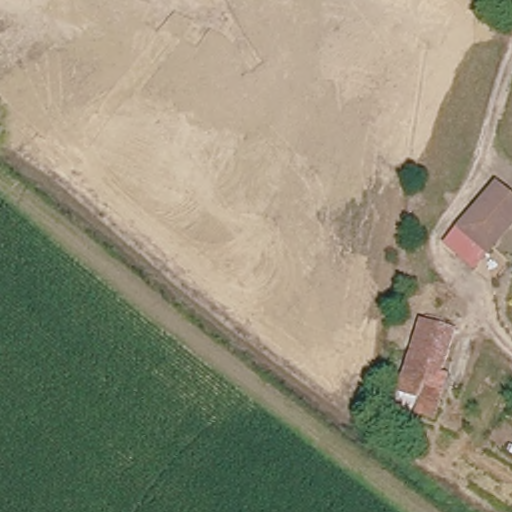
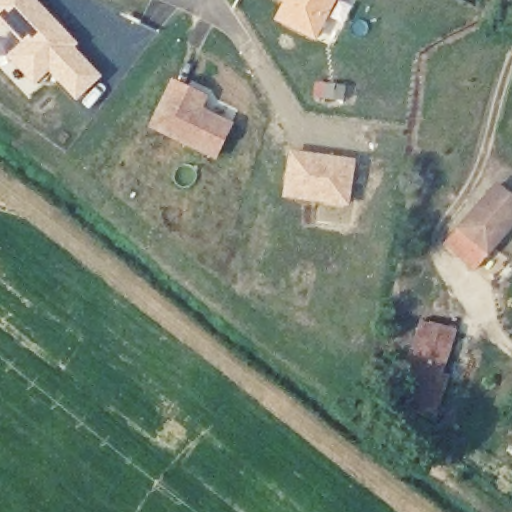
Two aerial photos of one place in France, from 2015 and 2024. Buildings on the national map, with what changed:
new [(76,47),(102,76),(76,101),(50,73),(35,86),(7,56),(21,43),(0,19),(0,0),(38,0),(79,44),(76,47)]
demolished [(137,0),(125,23),(70,0),(137,0)]
new [(336,0),(315,42),(272,20),(283,0),(336,0)]
demolished [(477,0),(474,6),(466,0),(477,0)]
new [(150,128),(170,78),(208,95),(204,109),(233,122),(217,160),(150,128)]
new [(313,82),(346,84),(344,101),(312,99),(313,82)]
new [(289,149),(356,159),(349,207),(281,198),(289,149)]
unchanged [(480,272),(449,250),(500,183),(512,193),(512,226),(480,272)]
unchanged [(449,391),(444,407),(403,395),(426,321),(443,327),(428,385),(443,390),(449,391)]
unchanged [(460,333),(443,390),(428,385),(443,327),(460,333)]

